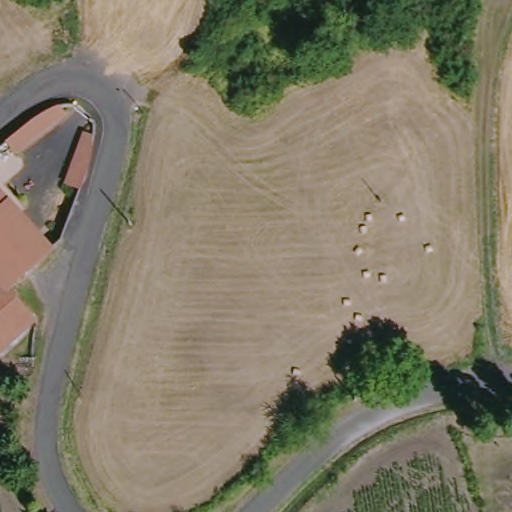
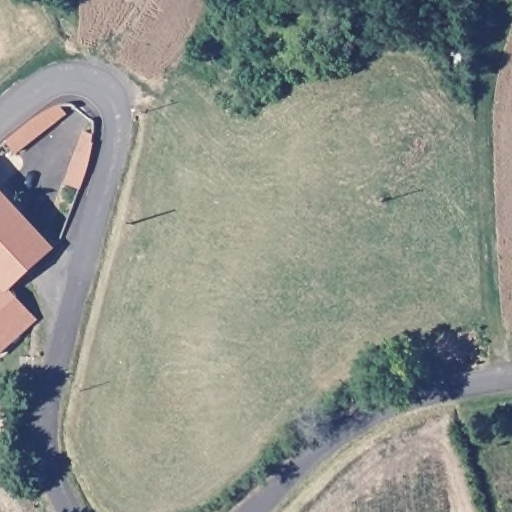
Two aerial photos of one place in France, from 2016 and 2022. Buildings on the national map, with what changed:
unchanged [(37,126),(60,114),(69,110),(78,110),(20,156),(11,148),(37,126)]
unchanged [(62,210),(77,174),(89,133),(100,134),(94,164),(80,215),(62,210)]
unchanged [(2,273),(0,271),(0,187),(57,245),(14,284),(2,273)]
unchanged [(43,314),(20,336),(0,314),(0,274),(2,273),(14,284),(43,314)]
unchanged [(2,354),(0,352),(0,314),(20,336),(2,354)]

